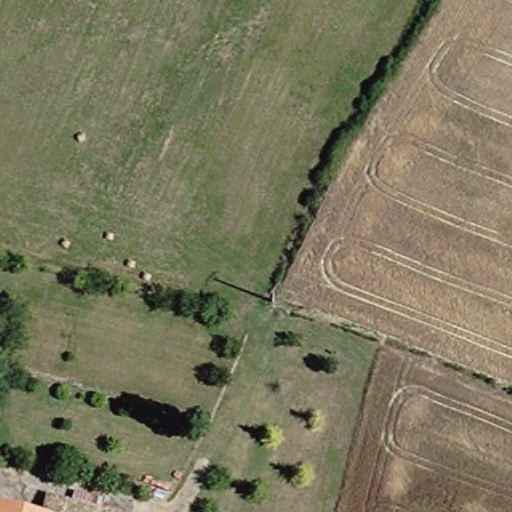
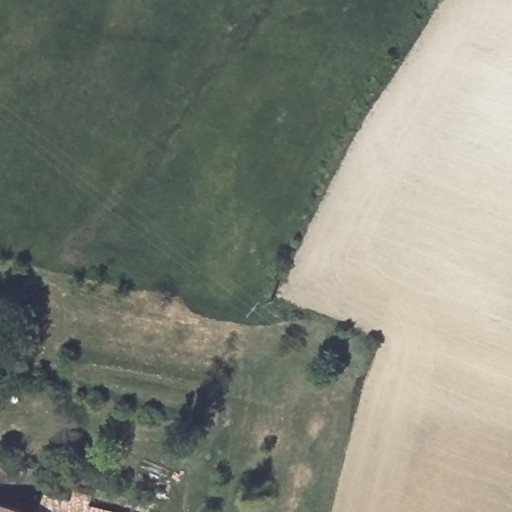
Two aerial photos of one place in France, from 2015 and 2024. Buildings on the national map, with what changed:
unchanged [(55,496),(118,512),(50,512),(55,496)]
unchanged [(0,501),(41,512),(0,512),(0,501)]

